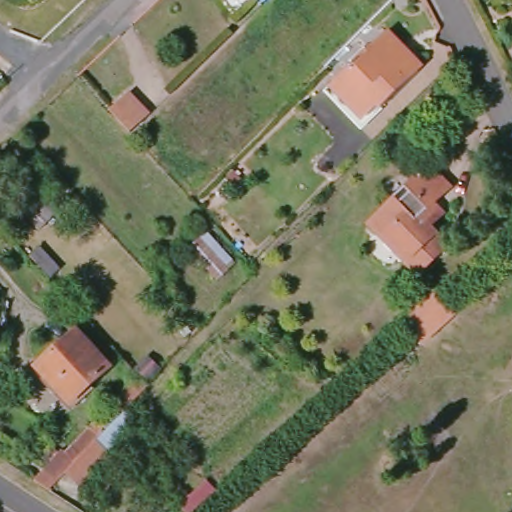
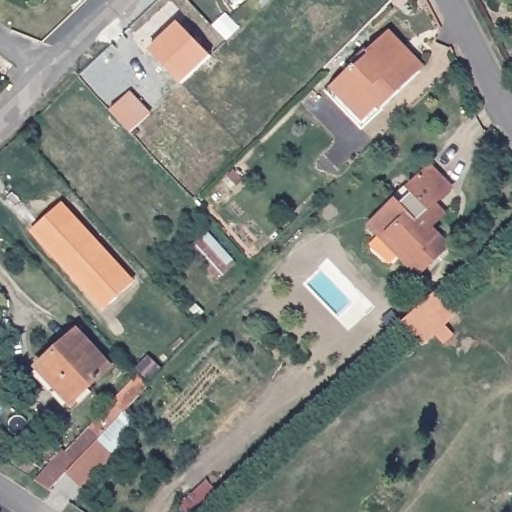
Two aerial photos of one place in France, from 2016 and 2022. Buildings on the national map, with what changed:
new [(146,49),(175,22),(208,55),(180,83),(146,49)]
unchanged [(324,89),(388,27),(405,45),(400,50),(341,107),(324,89)]
unchanged [(416,66),(378,105),(374,100),(354,120),(341,107),(400,50),(416,66)]
unchanged [(127,95),(152,120),(134,139),(110,112),(127,95)]
unchanged [(365,227),(393,202),(399,206),(407,198),(405,191),(427,170),(449,191),(434,209),(442,217),(429,231),(443,244),(448,249),(416,280),(413,277),(365,227)]
new [(62,206),(135,285),(105,312),(32,232),(62,206)]
unchanged [(210,232),(239,266),(217,286),(188,251),(210,232)]
unchanged [(431,296),(455,320),(420,352),(397,327),(431,296)]
unchanged [(74,329),(109,366),(67,405),(31,368),(74,329)]
unchanged [(119,448),(84,485),(70,472),(105,436),(119,448)]
unchanged [(57,486),(45,496),(32,487),(39,474),(57,486)]

